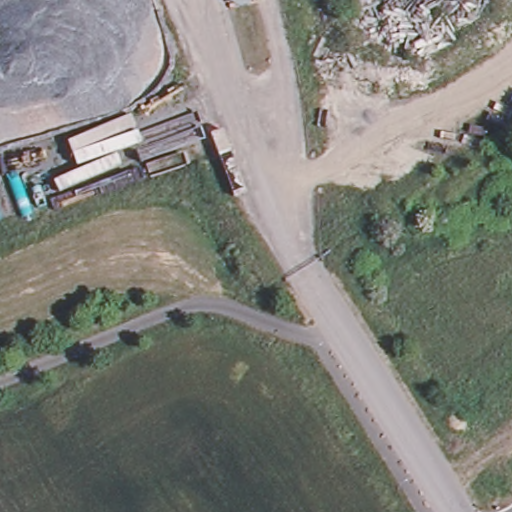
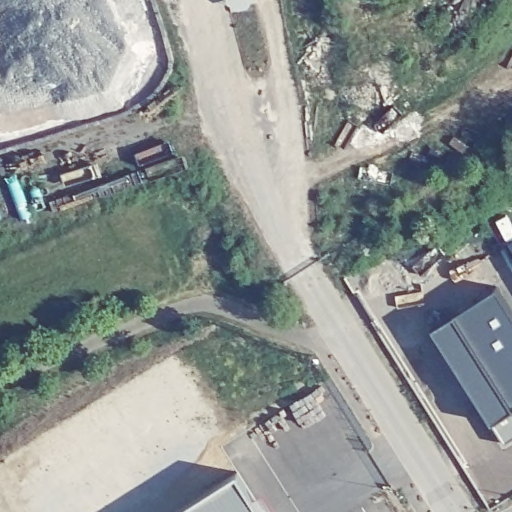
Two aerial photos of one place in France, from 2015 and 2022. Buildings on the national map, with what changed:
new [(497,294),(512,319),(512,439),(502,445),(492,426),(489,429),(432,334),(497,294)]
new [(233,484),(251,512),(189,512),(233,484)]

